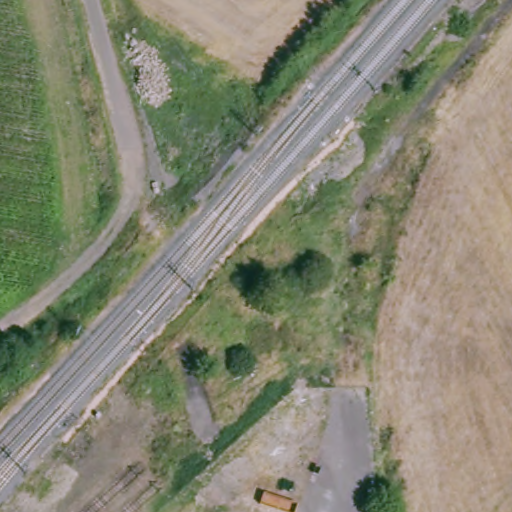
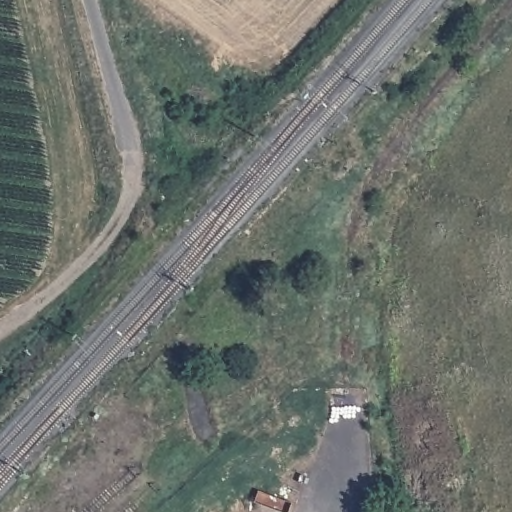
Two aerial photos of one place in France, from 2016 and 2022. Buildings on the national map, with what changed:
unchanged [(182,216),(169,209),(169,208),(170,206),(182,184),(195,190),(197,191),(198,192),(185,217),(182,216)]

